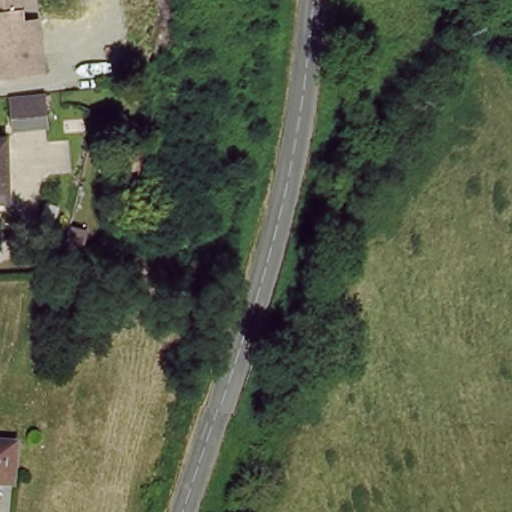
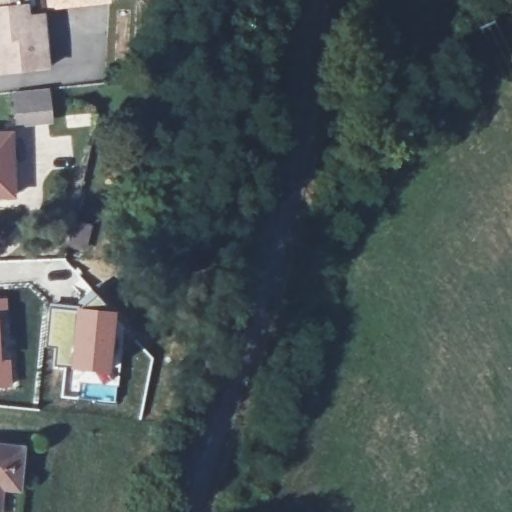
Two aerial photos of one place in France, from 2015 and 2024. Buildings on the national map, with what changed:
unchanged [(50,70),(5,76),(0,76),(0,0),(42,0),(50,70)]
unchanged [(49,116),(16,120),(13,90),(45,86),(49,116)]
unchanged [(0,135),(11,135),(15,200),(0,200),(0,135)]
unchanged [(66,235),(73,212),(87,214),(80,240),(66,235)]
new [(7,313),(0,314),(0,297),(6,297),(7,313)]
new [(48,303),(75,305),(68,368),(53,366),(54,347),(44,346),(48,303)]
new [(75,305),(113,310),(107,372),(68,368),(75,305)]
new [(0,349),(0,360),(10,359),(11,388),(0,389),(0,349)]
unchanged [(17,492),(2,490),(0,506),(0,447),(23,449),(17,492)]

